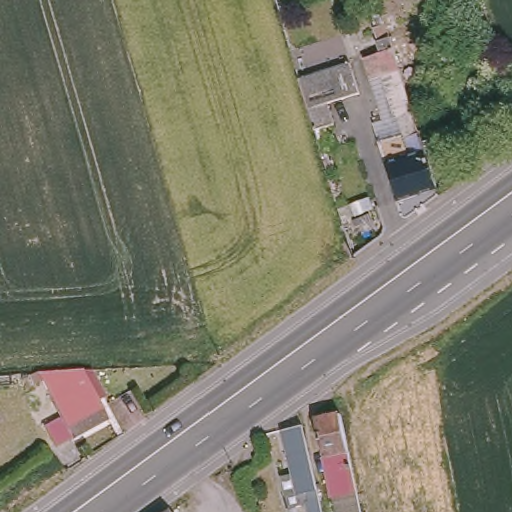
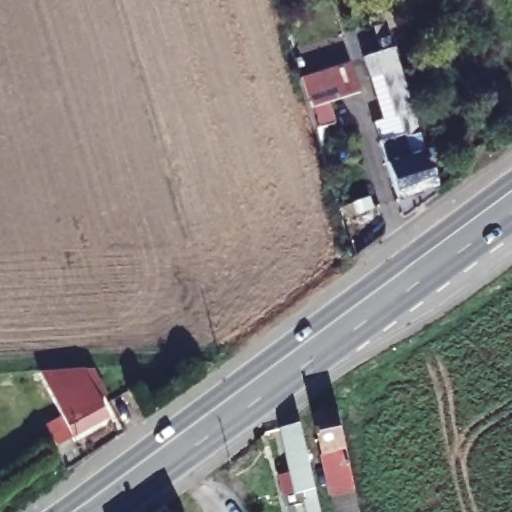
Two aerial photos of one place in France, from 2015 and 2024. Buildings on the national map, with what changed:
unchanged [(396,203),(377,144),(402,135),(393,105),(379,110),(362,59),(391,50),(397,68),(407,100),(417,131),(436,189),(396,203)]
unchanged [(296,70),(348,54),(364,105),(313,122),(296,70)]
unchanged [(89,370),(101,391),(95,394),(106,416),(72,435),(54,445),(44,427),(43,425),(44,425),(61,415),(35,374),(35,372),(34,368),(44,367),(55,367),(58,366),(73,365),(86,364),(88,368),(89,369),(89,370)]
unchanged [(314,413),(338,408),(338,410),(354,482),(360,512),(335,512),(329,487),(314,413)]
unchanged [(309,497),(306,489),(298,491),(296,487),(283,489),(279,467),(290,465),(281,424),(301,419),(322,512),(308,512),(305,498),(309,497)]
unchanged [(167,512),(156,512),(163,507),(167,512)]

